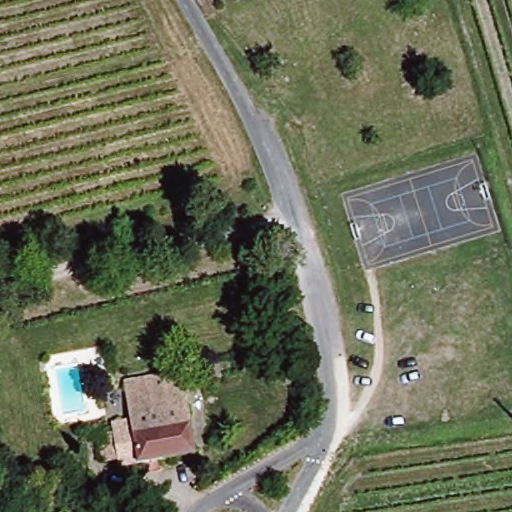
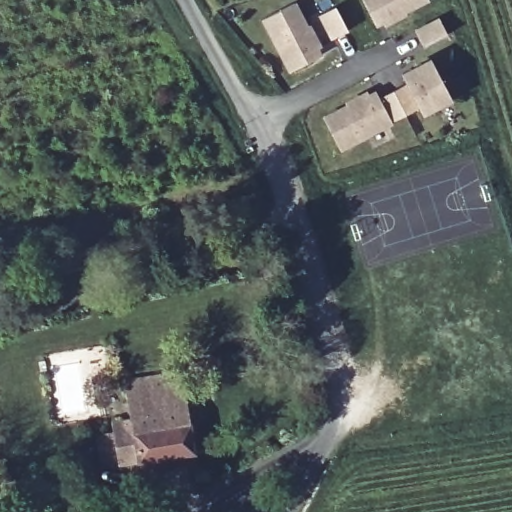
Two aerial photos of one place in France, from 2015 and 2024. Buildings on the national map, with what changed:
new [(430,1),(377,29),(362,0),(429,0),(430,1)]
new [(296,2),(308,24),(310,23),(322,46),(320,48),(323,54),(290,73),(261,21),(296,2)]
new [(452,100),(424,115),(401,71),(430,56),(452,100)]
new [(342,107),(342,104),(367,91),(369,95),(376,91),(394,125),(342,152),(323,117),(342,107)]
unchanged [(97,439),(108,437),(106,426),(125,421),(117,384),(177,370),(195,451),(115,468),(113,458),(101,461),(97,439)]

